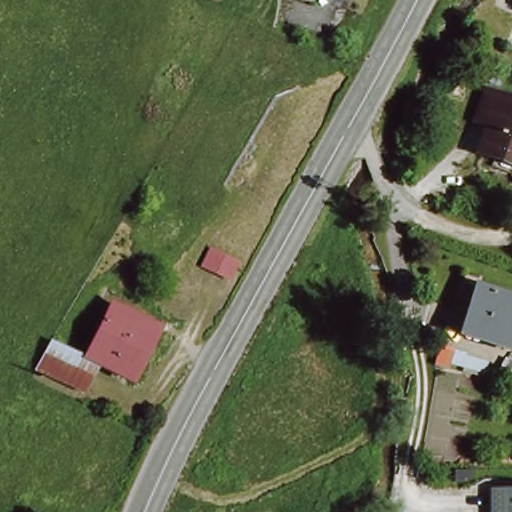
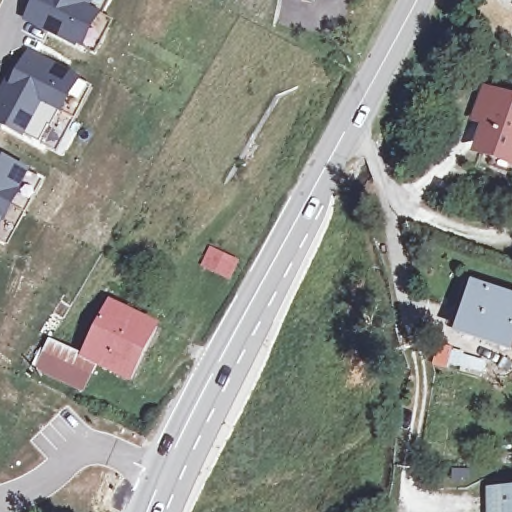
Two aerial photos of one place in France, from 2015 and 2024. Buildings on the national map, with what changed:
new [(29,20),(37,3),(43,6),(46,0),(99,0),(93,12),(103,17),(85,50),(29,20)]
new [(27,137),(25,140),(0,128),(0,95),(10,75),(15,78),(31,54),(82,80),(47,146),(27,137)]
unchanged [(483,149),(491,122),(476,117),(486,90),(512,99),(512,160),(483,149)]
new [(31,172),(30,174),(33,177),(0,240),(0,156),(31,172)]
unchanged [(240,261),(231,278),(200,265),(211,247),(240,261)]
unchanged [(460,328),(475,286),(512,300),(512,346),(460,328)]
unchanged [(123,380),(97,367),(84,394),(36,370),(51,344),(84,361),(112,306),(157,330),(144,356),(129,383),(123,380)]
unchanged [(491,488),(512,489),(512,512),(491,512),(491,488)]

